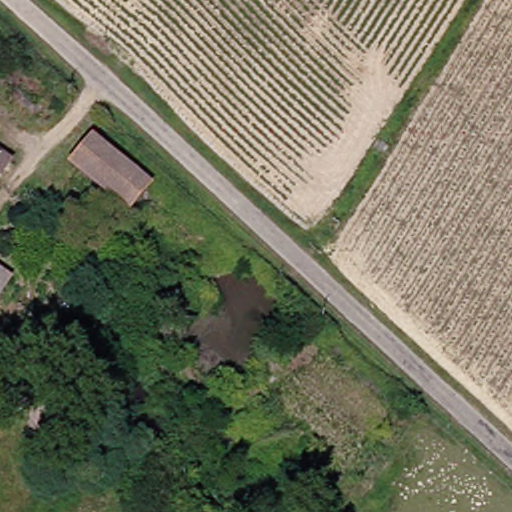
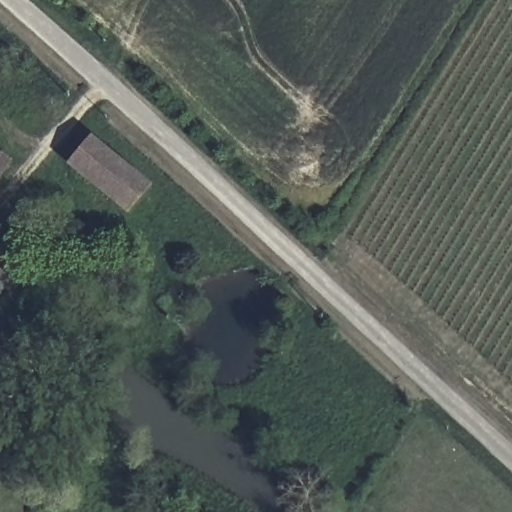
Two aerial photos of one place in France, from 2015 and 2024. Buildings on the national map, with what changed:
unchanged [(151,180),(130,207),(77,161),(96,134),(151,180)]
unchanged [(10,157),(0,171),(0,150),(10,157)]
unchanged [(11,279),(0,295),(0,270),(11,279)]

